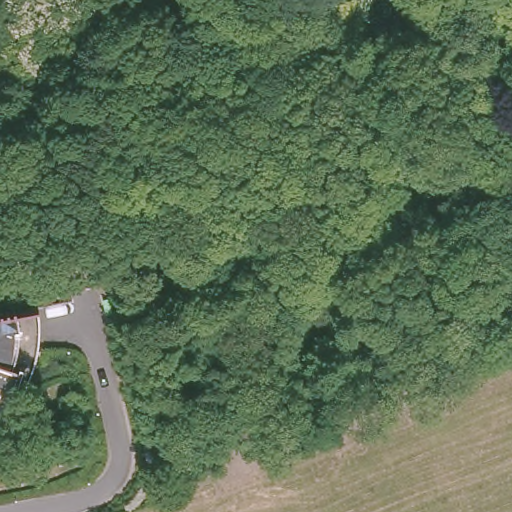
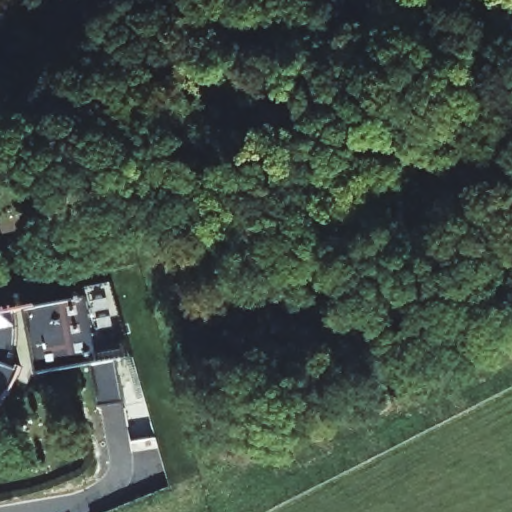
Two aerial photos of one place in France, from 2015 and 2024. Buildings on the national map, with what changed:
new [(25,310),(88,298),(89,297),(85,289),(110,283),(132,356),(40,373),(25,310)]
unchanged [(6,304),(10,306),(20,310),(20,324),(19,341),(15,357),(24,359),(23,362),(17,378),(9,394),(0,406),(0,306),(6,304)]

